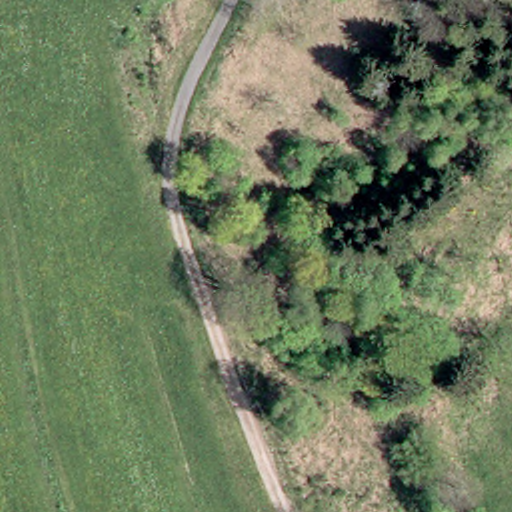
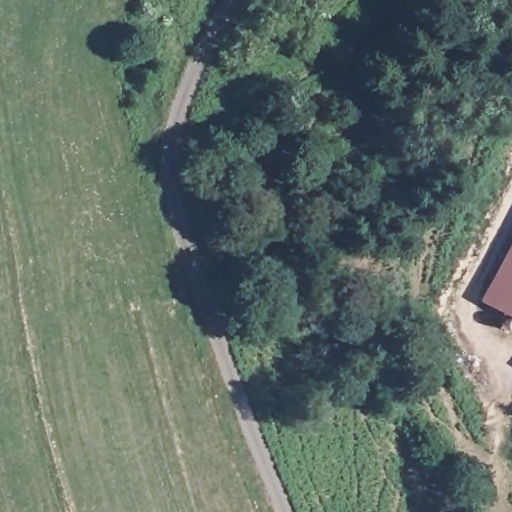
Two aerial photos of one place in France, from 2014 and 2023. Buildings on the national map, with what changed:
new [(482,301),(512,243),(512,318),(482,301)]

